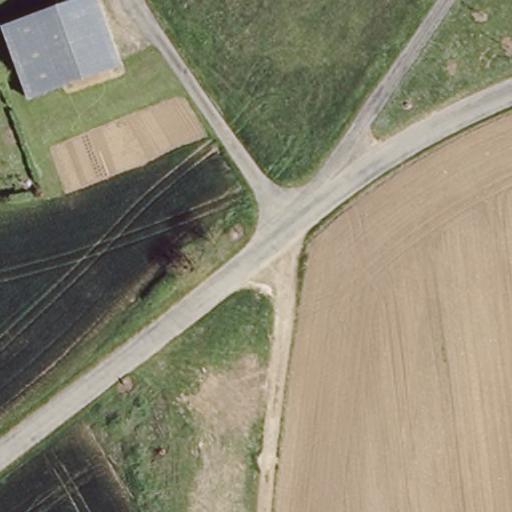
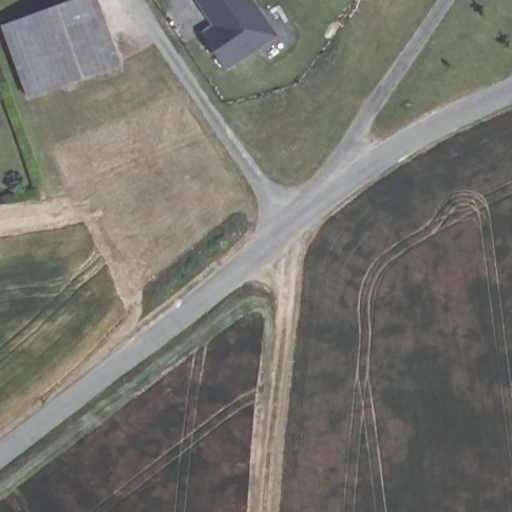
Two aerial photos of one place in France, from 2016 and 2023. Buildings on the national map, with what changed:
unchanged [(3,21),(62,0),(76,0),(102,73),(30,99),(3,21)]
unchanged [(102,73),(76,0),(94,0),(118,67),(102,73)]
new [(206,0),(252,0),(276,35),(225,69),(203,36),(221,24),(206,0)]

